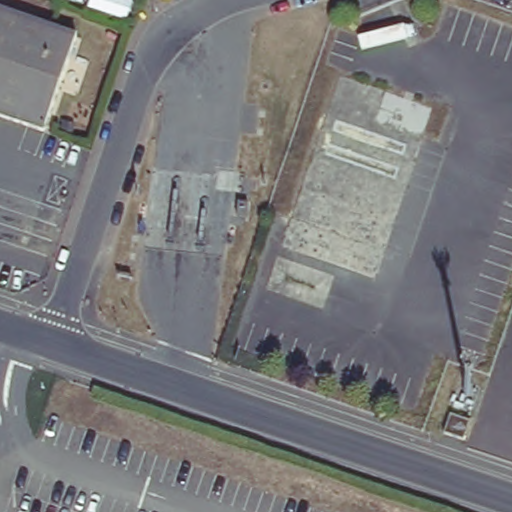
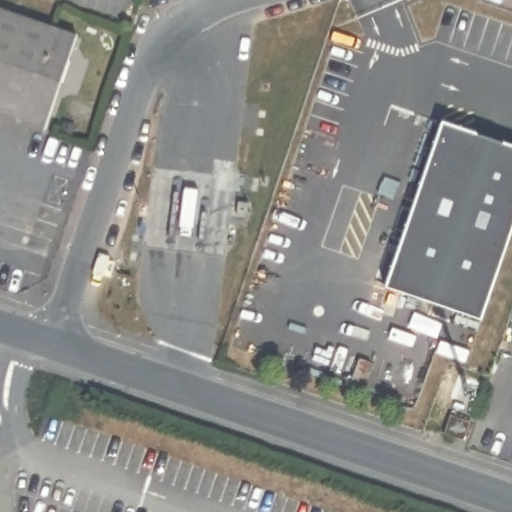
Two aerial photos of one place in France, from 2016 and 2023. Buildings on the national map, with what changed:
unchanged [(0,8),(77,35),(44,133),(0,118),(0,8)]
new [(495,316),(397,288),(454,117),(512,136),(512,264),(495,316)]

